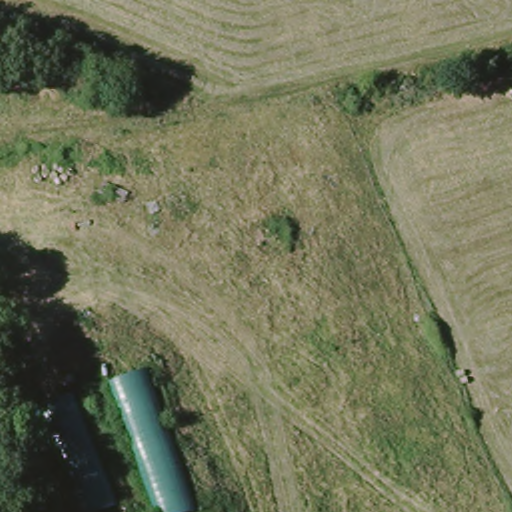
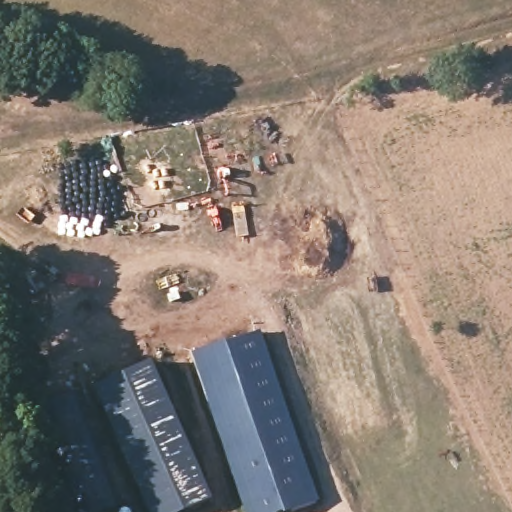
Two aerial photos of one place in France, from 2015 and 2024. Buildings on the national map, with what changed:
new [(192,353),(260,334),(320,502),(288,512),(246,512),(192,353)]
unchanged [(108,382),(147,368),(199,509),(189,512),(153,512),(108,382)]
unchanged [(37,411),(77,393),(119,504),(97,512),(75,512),(37,411)]

